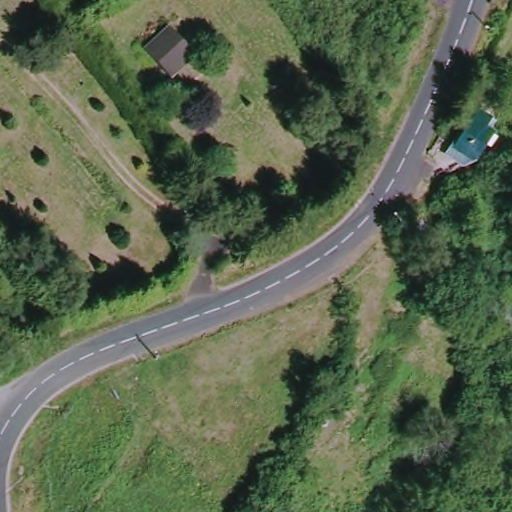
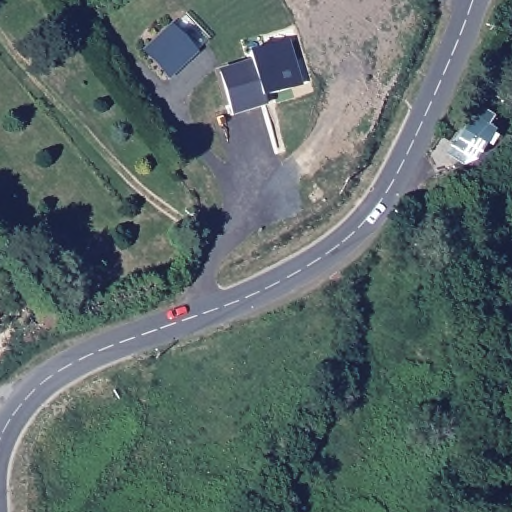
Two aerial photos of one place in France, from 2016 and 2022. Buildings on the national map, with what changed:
unchanged [(175,33),(193,60),(165,79),(146,52),(175,33)]
new [(218,71),(252,61),(250,54),(288,43),(301,88),(263,99),(266,108),(233,116),(218,71)]
unchanged [(465,132),(475,116),(480,120),(494,100),(503,106),(496,118),(502,122),(485,146),(475,152),(459,141),(465,132)]

